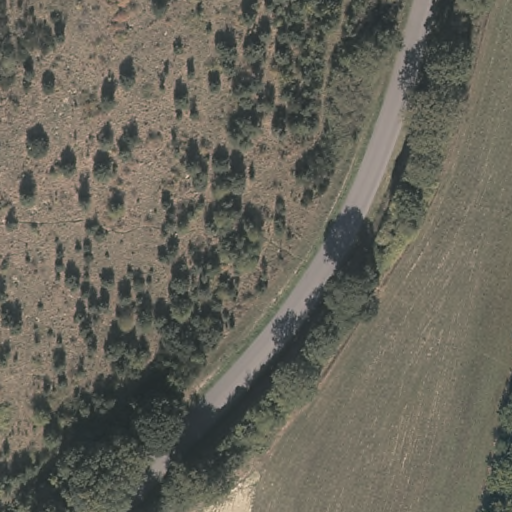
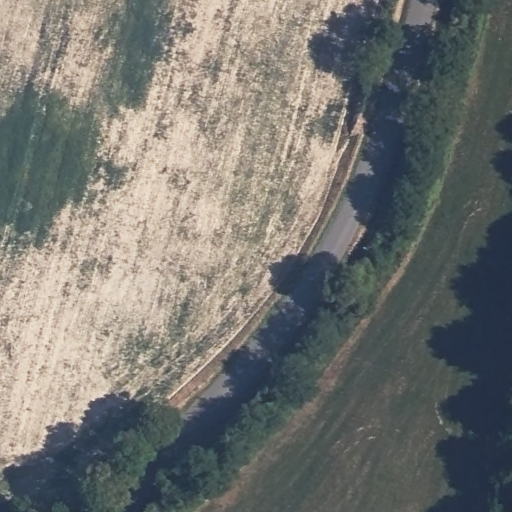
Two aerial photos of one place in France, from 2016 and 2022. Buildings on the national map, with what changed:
[]

